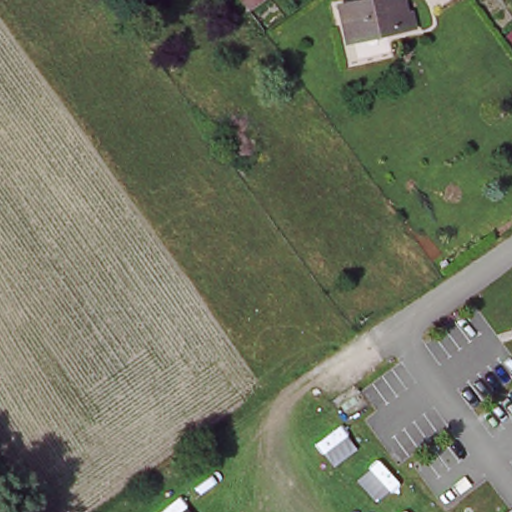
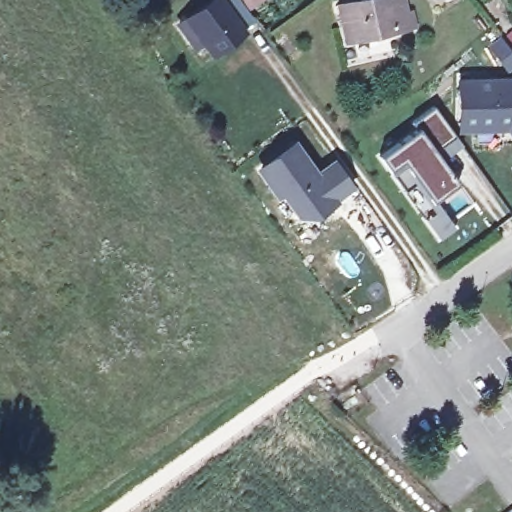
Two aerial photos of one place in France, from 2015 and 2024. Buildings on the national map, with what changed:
new [(242,30),(213,51),(188,16),(210,0),(221,0),(242,30)]
unchanged [(248,12),(240,0),(264,0),(248,12)]
unchanged [(373,0),(380,0),(381,3),(391,0),(397,0),(401,16),(407,15),(410,31),(342,46),(334,9),(373,0)]
new [(203,38),(194,45),(178,23),(188,16),(203,38)]
new [(512,78),(512,139),(507,132),(457,131),(456,78),(512,78)]
new [(463,146),(442,162),(434,153),(458,184),(419,212),(379,158),(417,130),(412,123),(434,107),(456,137),(463,146)]
new [(292,144),(316,176),(334,164),(349,184),(332,198),(334,200),(314,214),(301,214),(281,190),(278,193),(259,168),(292,144)]
new [(435,214),(429,205),(435,201),(456,229),(440,240),(426,221),(435,214)]

